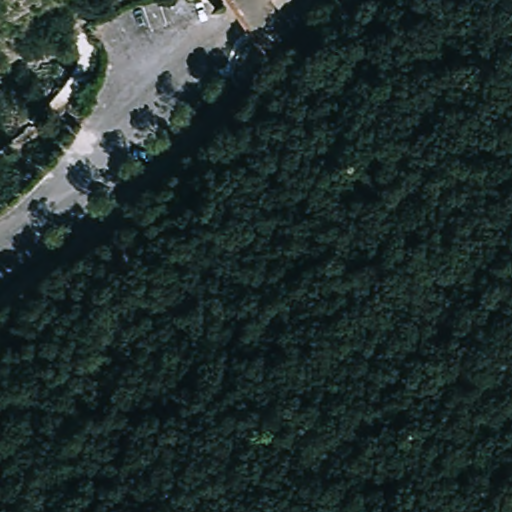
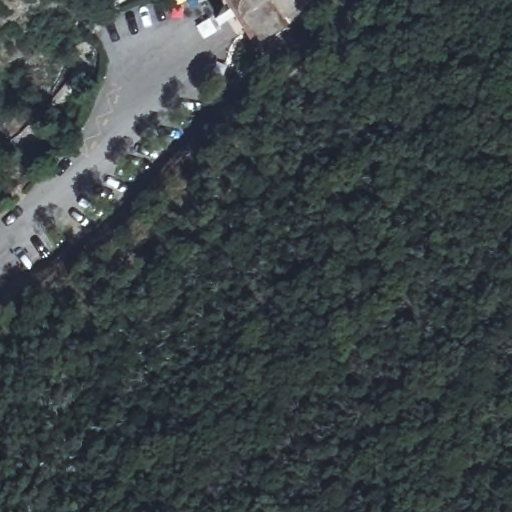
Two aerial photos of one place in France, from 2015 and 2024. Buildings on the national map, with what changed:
unchanged [(261,58),(225,0),(269,0),(292,39),(261,58)]
unchanged [(270,0),(335,0),(292,39),(277,11),(270,0)]

